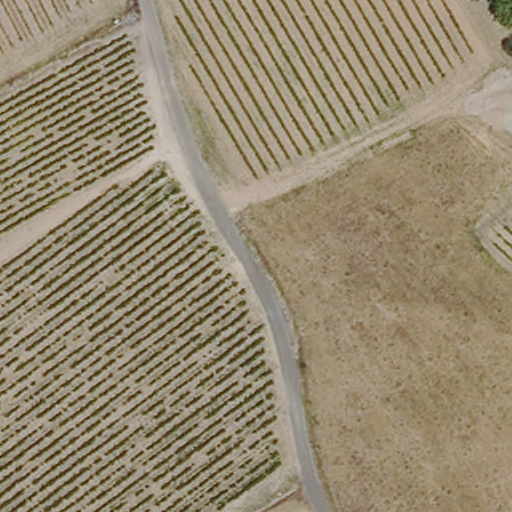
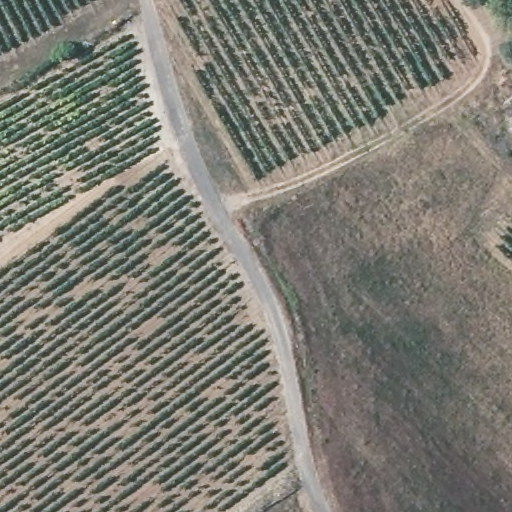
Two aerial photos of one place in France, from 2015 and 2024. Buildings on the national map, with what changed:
[]

